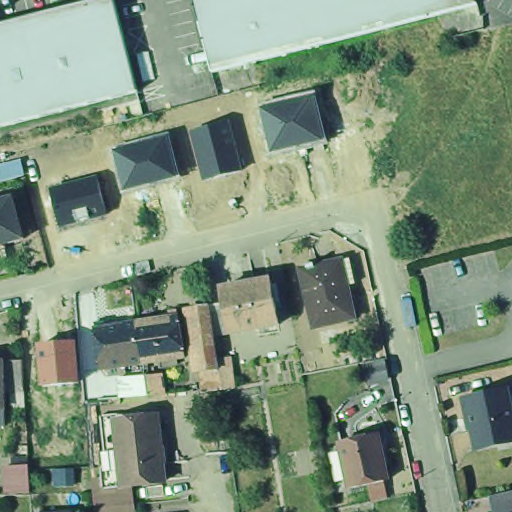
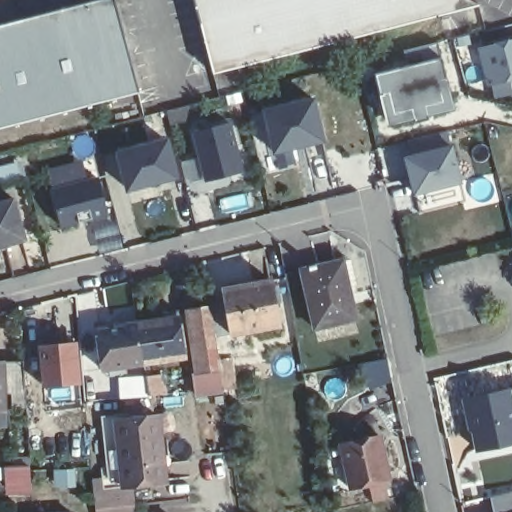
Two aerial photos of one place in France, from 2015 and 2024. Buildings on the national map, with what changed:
unchanged [(215,72),(195,0),(473,0),(478,3),(215,72)]
unchanged [(0,131),(0,29),(108,1),(133,96),(0,131)]
new [(477,47),(512,38),(512,79),(487,86),(477,47)]
new [(440,57),(454,111),(386,127),(373,72),(440,57)]
unchanged [(261,109),(314,97),(325,142),(272,154),(261,109)]
unchanged [(243,172),(203,182),(192,132),(230,122),(243,172)]
new [(451,145),(461,184),(411,196),(402,157),(410,155),(407,141),(447,132),(451,145)]
unchanged [(177,178),(125,192),(115,151),(167,138),(177,178)]
unchanged [(25,176),(0,183),(0,165),(21,159),(25,176)]
unchanged [(98,177),(107,217),(60,227),(51,190),(98,177)]
unchanged [(25,240),(0,246),(0,203),(14,200),(25,240)]
unchanged [(309,327),(295,271),(302,268),(302,266),(308,265),(308,267),(331,262),(342,259),(348,284),(342,286),(350,318),(309,327)]
unchanged [(203,371),(192,372),(190,352),(148,358),(143,318),(175,313),(175,307),(183,306),(184,311),(204,307),(217,305),(220,305),(218,291),(263,283),(271,328),(223,335),(208,338),(210,348),(213,370),(214,379),(204,381),(203,371)]
unchanged [(116,370),(115,364),(106,365),(100,325),(100,318),(107,317),(108,324),(143,318),(148,358),(130,362),(131,367),(116,370)]
unchanged [(57,377),(58,386),(40,387),(38,345),(75,342),(77,375),(57,377)]
unchanged [(0,363),(1,363),(23,362),(25,392),(2,392),(2,411),(0,411),(0,363)]
unchanged [(146,386),(145,377),(161,374),(165,395),(148,396),(98,401),(97,390),(146,386)]
unchanged [(60,405),(58,391),(57,377),(77,375),(78,389),(80,402),(60,405)]
unchanged [(502,395),(512,439),(512,446),(471,455),(460,403),(502,395)]
unchanged [(126,507),(91,511),(88,511),(86,491),(96,491),(95,480),(101,480),(96,417),(110,416),(110,422),(116,488),(124,487),(126,507)]
unchanged [(152,418),(158,484),(124,487),(116,488),(110,422),(152,418)]
unchanged [(372,433),(382,478),(345,487),(335,442),(372,433)]
unchanged [(13,496),(11,469),(27,468),(30,495),(13,496)]
unchanged [(73,511),(73,512),(49,512),(73,511)]

